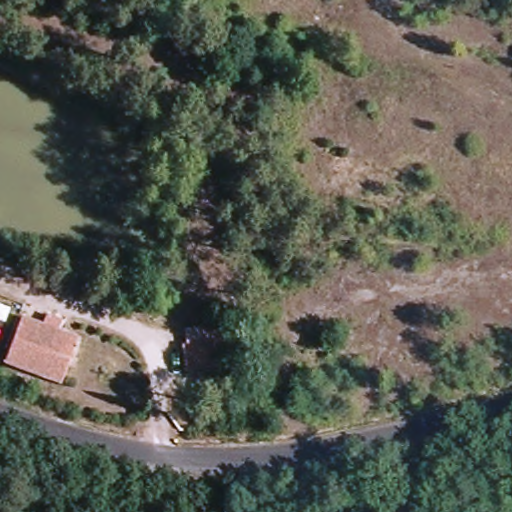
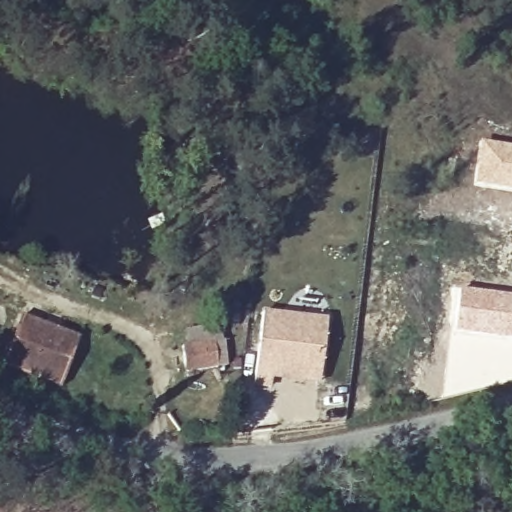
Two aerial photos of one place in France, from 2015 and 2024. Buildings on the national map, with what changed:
new [(512,145),(512,191),(472,186),(478,140),(512,145)]
new [(512,295),(512,339),(453,332),(458,288),(512,295)]
unchanged [(42,323),(47,311),(67,319),(62,330),(82,337),(62,388),(5,366),(22,316),(42,323)]
new [(272,379),(270,390),(255,388),(263,312),(326,319),(318,384),(272,379)]
unchanged [(217,338),(222,368),(186,375),(181,345),(217,338)]

